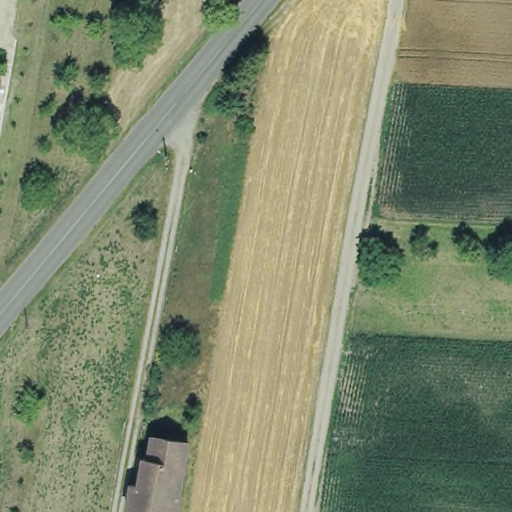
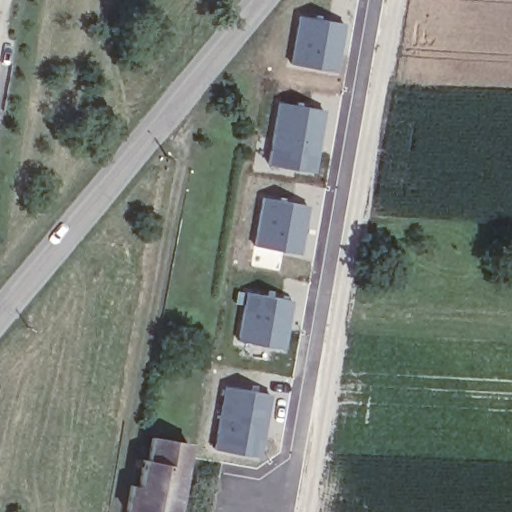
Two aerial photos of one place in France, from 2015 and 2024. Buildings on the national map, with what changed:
new [(291,63),(298,15),(341,21),(335,70),(291,63)]
new [(279,103),(322,109),(313,170),(269,164),(279,103)]
new [(254,244),(262,197),(311,205),(310,234),(301,232),(296,255),(254,244)]
new [(237,340),(242,305),(234,302),(237,291),(292,297),(287,348),(237,340)]
new [(225,385),(268,393),(257,455),(214,448),(225,385)]
unchanged [(131,496),(134,470),(144,471),(147,445),(151,445),(155,421),(161,423),(191,428),(179,505),(177,504),(175,512),(129,512),(132,496),(131,496)]

